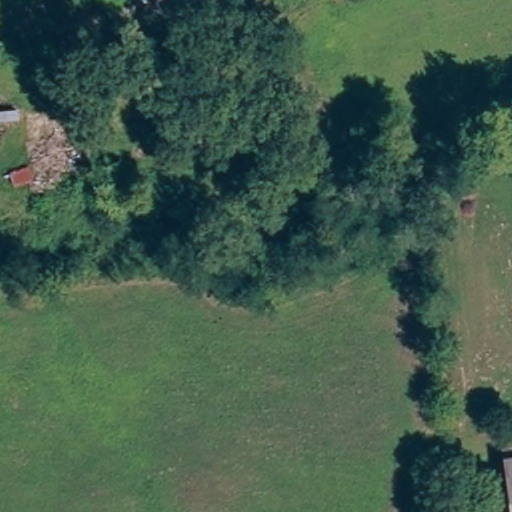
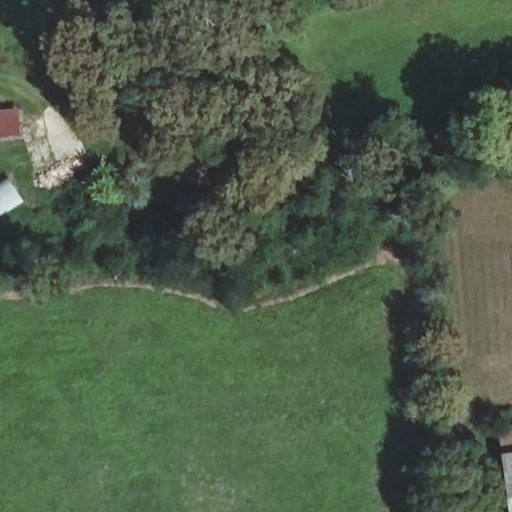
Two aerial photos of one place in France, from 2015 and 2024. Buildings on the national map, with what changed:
unchanged [(9,226),(0,227),(0,164),(9,226)]
unchanged [(512,425),(512,512),(508,512),(497,427),(512,425)]

